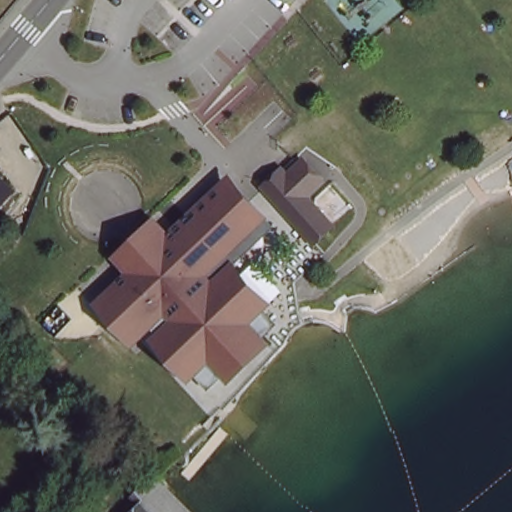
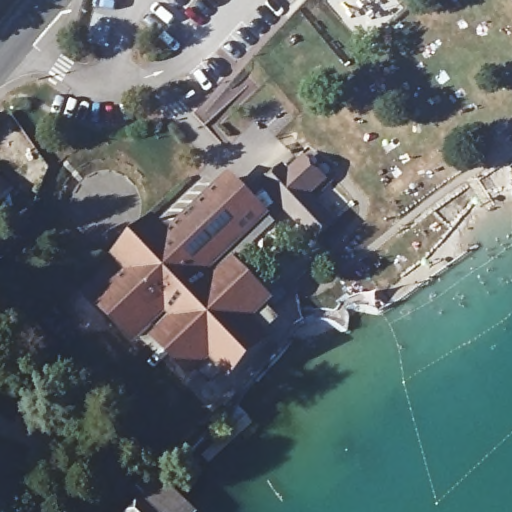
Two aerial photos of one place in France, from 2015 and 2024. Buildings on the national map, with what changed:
unchanged [(333,221),(312,239),(258,178),(280,160),(333,221)]
unchanged [(240,261),(277,303),(268,310),(280,323),(270,335),(276,343),(235,383),(223,373),(211,386),(198,374),(192,379),(149,331),(135,346),(102,310),(82,327),(61,302),(85,282),(99,300),(128,272),(115,257),(156,215),(172,230),(230,171),(277,224),(240,261)]
unchanged [(0,206),(0,190),(0,191),(7,199),(0,206)]
unchanged [(295,235),(299,232),(312,249),(309,252),(301,258),(288,240),(295,235)]
unchanged [(314,252),(331,275),(320,285),(301,262),(314,252)]
unchanged [(175,506),(176,507),(182,512),(150,512),(140,502),(155,487),(175,506)]

